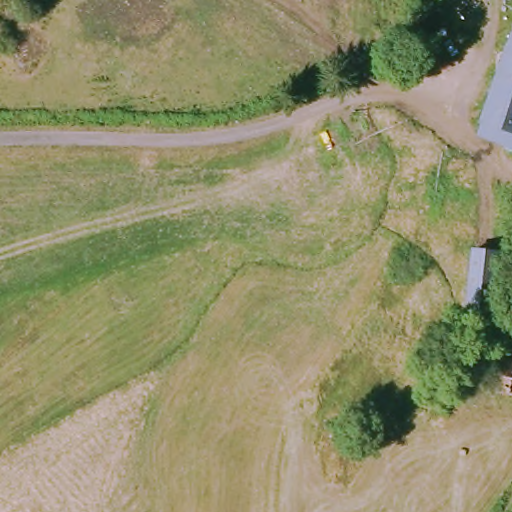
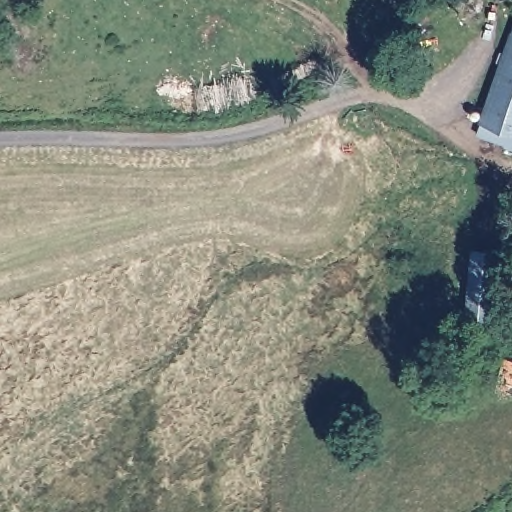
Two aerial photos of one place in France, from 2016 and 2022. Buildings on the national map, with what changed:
unchanged [(507,131),(495,128),(492,140),(475,134),(512,27),(512,150),(502,146),(507,131)]
unchanged [(494,315),(470,312),(476,249),(500,252),(494,315)]
unchanged [(505,357),(512,358),(512,392),(498,389),(505,357)]

